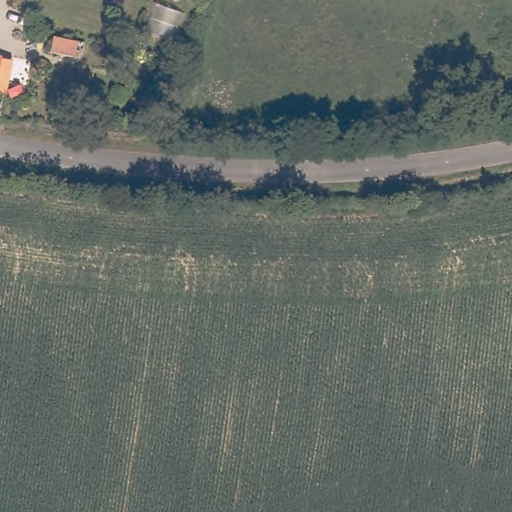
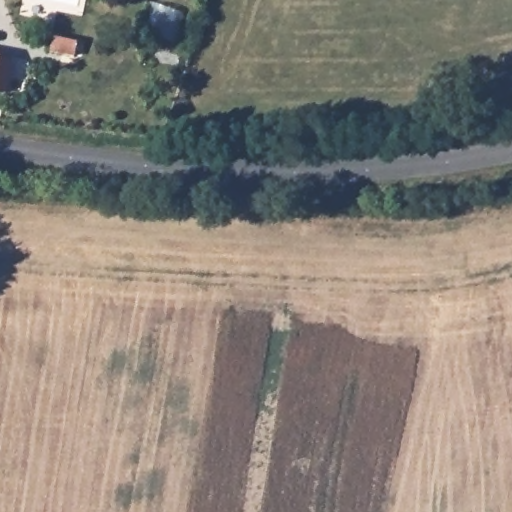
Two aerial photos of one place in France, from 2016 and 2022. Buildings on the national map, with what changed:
unchanged [(54,41),(57,24),(82,30),(78,46),(54,41)]
unchanged [(0,83),(0,50),(16,52),(9,85),(0,83)]

